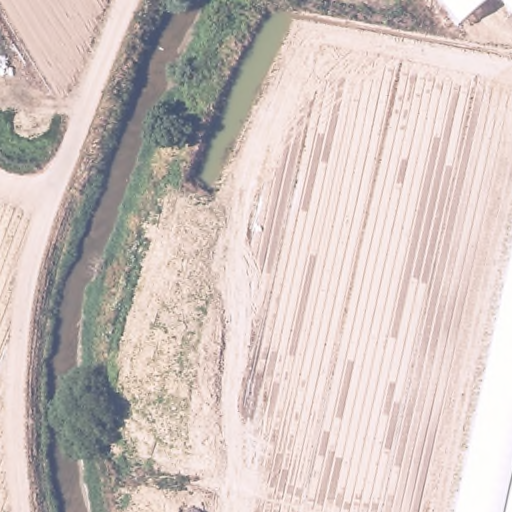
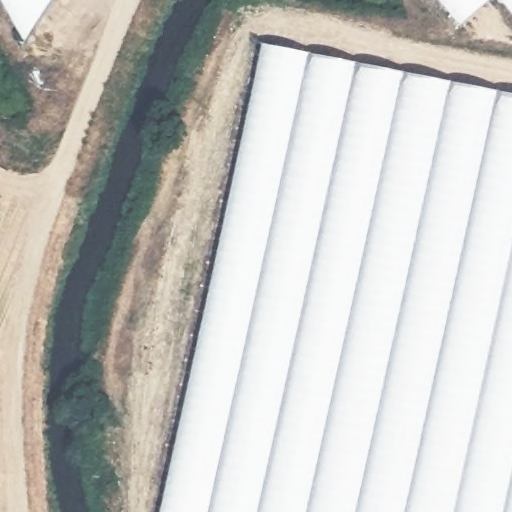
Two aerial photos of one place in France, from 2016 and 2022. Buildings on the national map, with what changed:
new [(7,0),(50,0),(26,36),(7,0)]
unchanged [(442,0),(488,0),(462,24),(442,0)]
unchanged [(502,0),(512,0),(512,14),(502,0)]
new [(455,512),(159,512),(261,43),(512,94),(512,252),(455,512)]
unchanged [(512,252),(512,512),(455,512),(512,252)]

